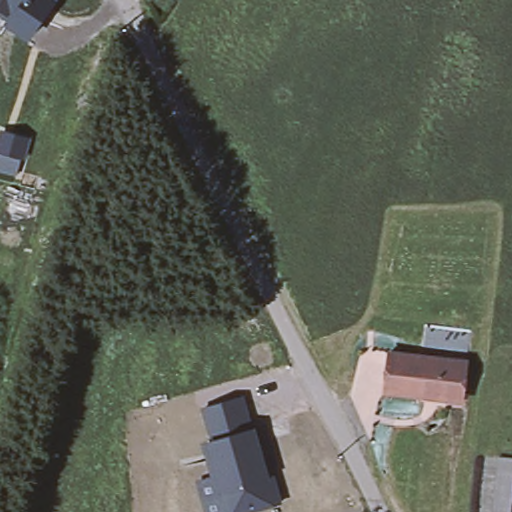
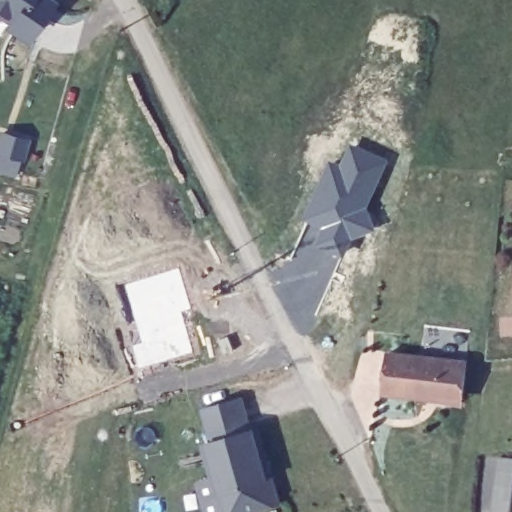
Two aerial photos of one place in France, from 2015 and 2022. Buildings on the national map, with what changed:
unchanged [(0,23),(0,0),(53,0),(58,3),(29,43),(0,23)]
new [(0,172),(0,130),(30,139),(24,161),(21,160),(16,177),(0,172)]
new [(389,162),(369,210),(376,232),(350,242),(343,258),(314,245),(321,228),(304,223),(328,162),(341,167),(349,146),(389,162)]
new [(191,311),(183,314),(195,355),(139,373),(133,347),(145,345),(128,285),(181,271),(191,311)]
unchanged [(417,396),(385,392),(389,351),(423,355),(467,361),(463,396),(463,402),(417,396)]
unchanged [(201,446),(211,444),(202,409),(243,398),(253,429),(266,474),(276,471),(284,503),(256,512),(205,512),(196,485),(209,480),(201,446)]
unchanged [(512,512),(492,512),(497,463),(512,465),(512,512)]

